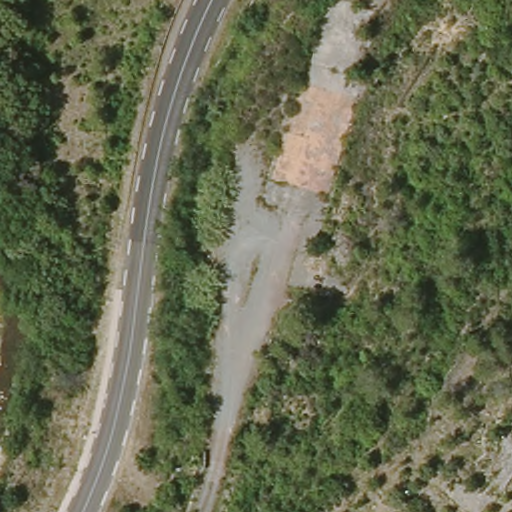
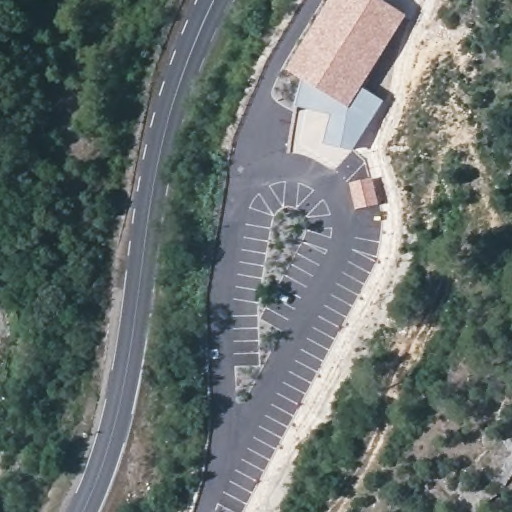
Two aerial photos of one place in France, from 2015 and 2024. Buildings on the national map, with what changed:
new [(362,86),(383,99),(357,143),(354,151),(324,144),(331,115),(297,107),(304,80),(287,70),(331,0),(382,0),(406,15),(362,86)]
demolished [(293,72),(357,91),(337,192),(272,175),(292,75),(293,72)]

